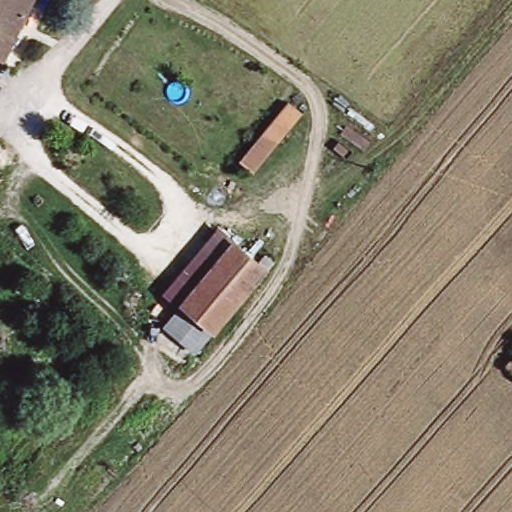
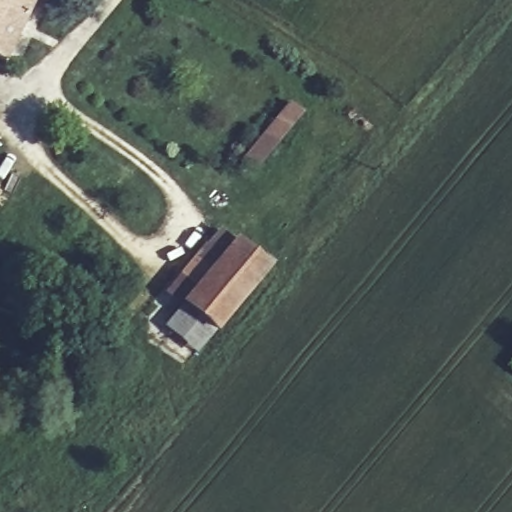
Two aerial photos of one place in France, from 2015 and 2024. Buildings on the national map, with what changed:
unchanged [(1,53),(0,53),(0,0),(25,0),(1,53)]
unchanged [(241,162),(290,101),(307,114),(257,176),(241,162)]
unchanged [(210,325),(176,297),(229,232),(264,261),(210,325)]
unchanged [(512,357),(512,372),(504,366),(512,357)]

